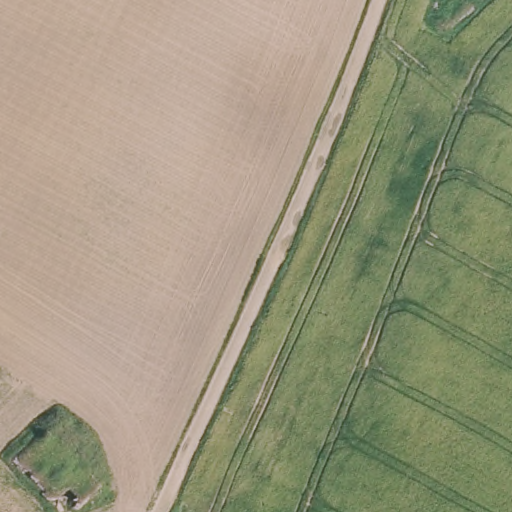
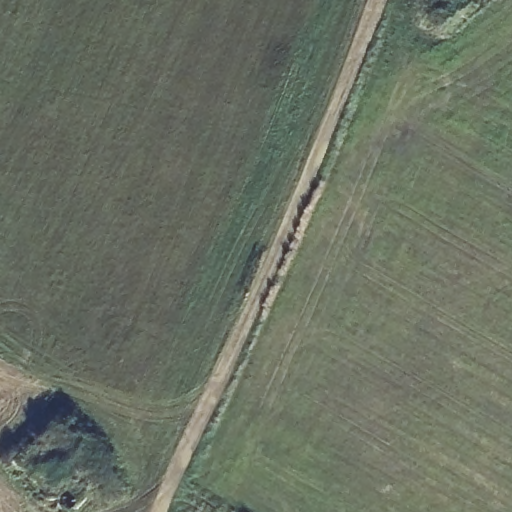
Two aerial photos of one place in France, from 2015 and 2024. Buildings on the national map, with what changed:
unchanged [(55,405),(98,447),(86,461),(100,482),(71,505),(59,492),(49,498),(6,454),(55,405)]

